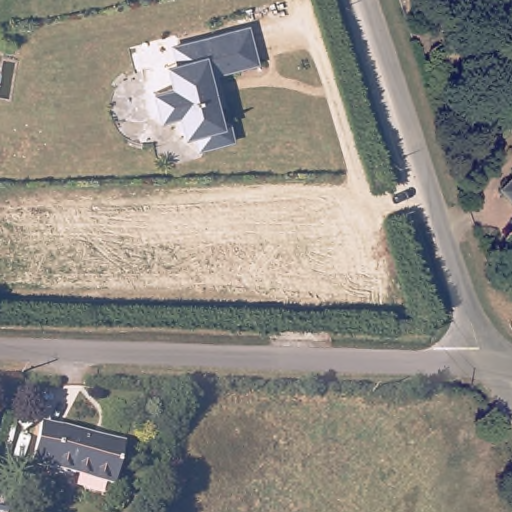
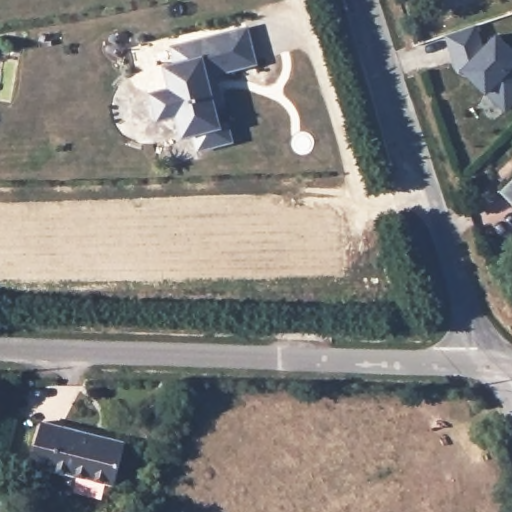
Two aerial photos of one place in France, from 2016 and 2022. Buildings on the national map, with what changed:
new [(485,51),(500,36),(512,48),(512,96),(502,106),(465,69),(461,70),(455,53),(449,35),(477,26),(485,51)]
unchanged [(194,136),(183,139),(179,123),(177,116),(158,121),(152,97),(171,92),(170,86),(166,70),(176,67),(172,52),(177,50),(246,32),(254,66),(212,77),(215,86),(208,87),(218,127),(226,126),(230,144),(202,151),(197,152),(194,136)]
unchanged [(506,192),(512,185),(512,197),(506,192)]
unchanged [(41,420),(126,441),(114,485),(31,463),(41,420)]

